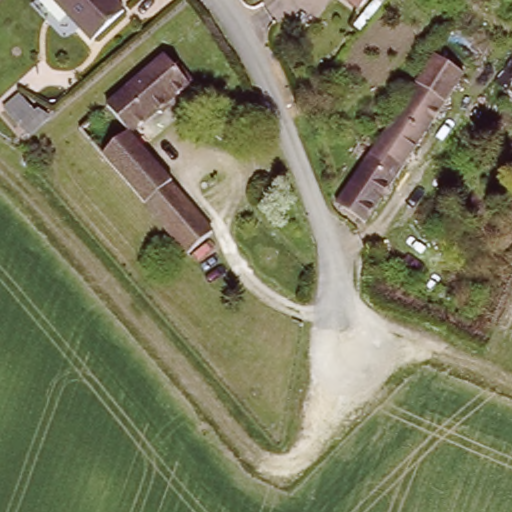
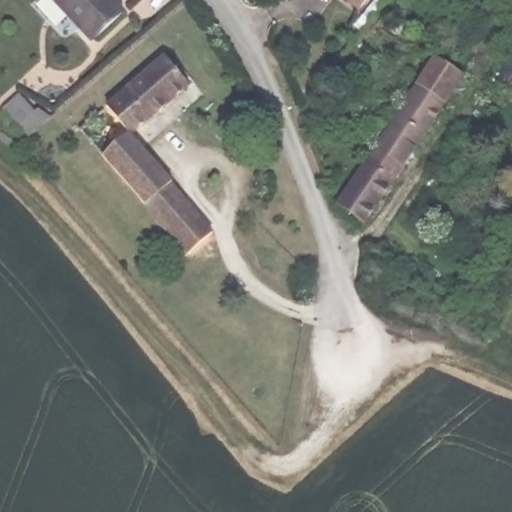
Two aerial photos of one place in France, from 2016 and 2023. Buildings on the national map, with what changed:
unchanged [(95,42),(61,0),(108,0),(124,19),(95,42)]
unchanged [(356,0),(366,0),(361,5),(356,0)]
unchanged [(98,157),(122,138),(99,112),(121,92),(157,60),(170,75),(173,71),(185,84),(181,88),(146,119),(127,134),(170,184),(165,188),(196,223),(206,234),(185,255),(98,157)]
unchanged [(375,151),(361,142),(376,120),(389,129),(436,62),(466,82),(366,229),(336,209),(375,151)]

